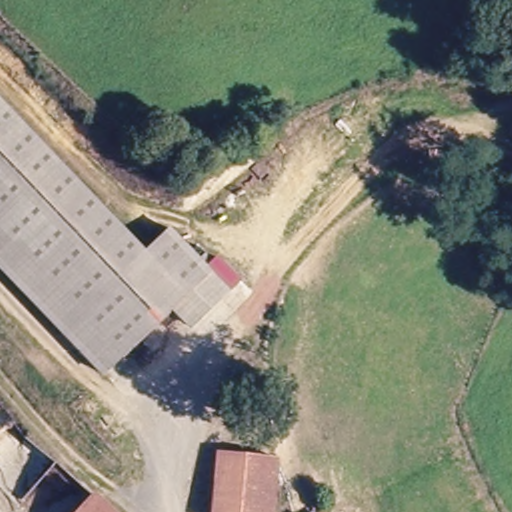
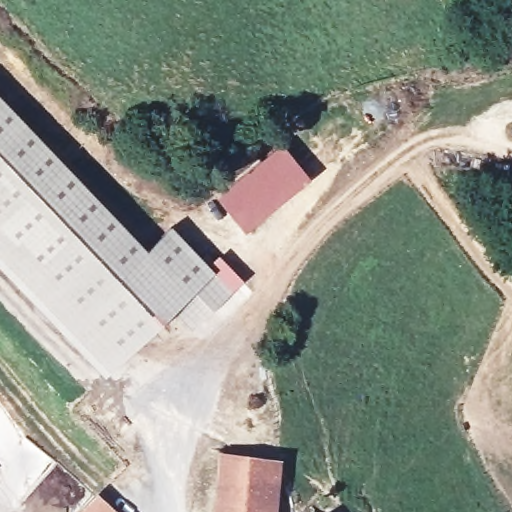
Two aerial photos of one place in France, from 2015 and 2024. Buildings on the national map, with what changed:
unchanged [(0,270),(0,98),(144,250),(169,227),(211,271),(229,290),(187,325),(172,311),(103,378),(0,270)]
new [(238,178),(283,144),(311,177),(244,235),(214,199),(238,178)]
unchanged [(277,512),(212,512),(216,453),(282,458),(277,512)]
unchanged [(118,512),(79,512),(100,493),(118,512)]

